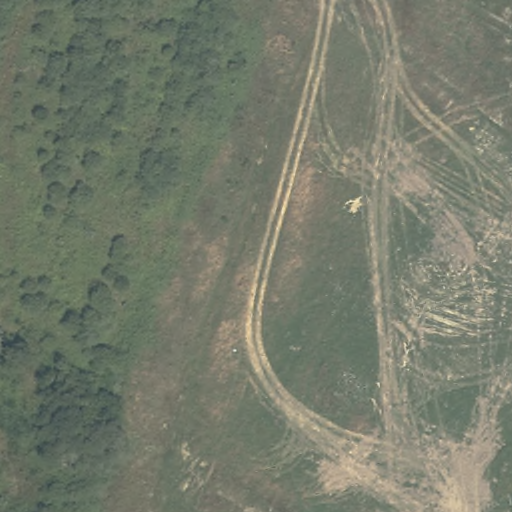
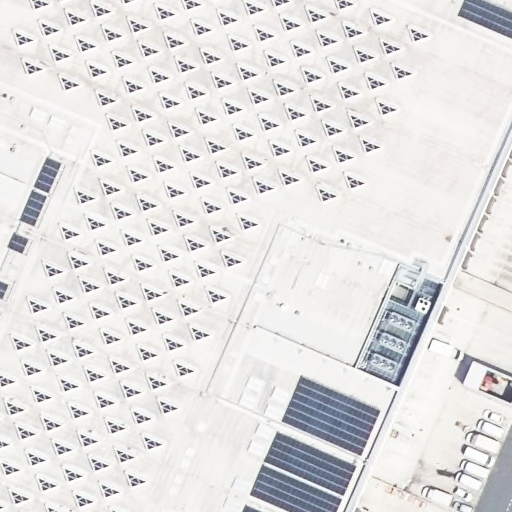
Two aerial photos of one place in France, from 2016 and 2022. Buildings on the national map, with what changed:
new [(512,0),(512,158),(358,512),(0,512),(0,0),(512,0)]

